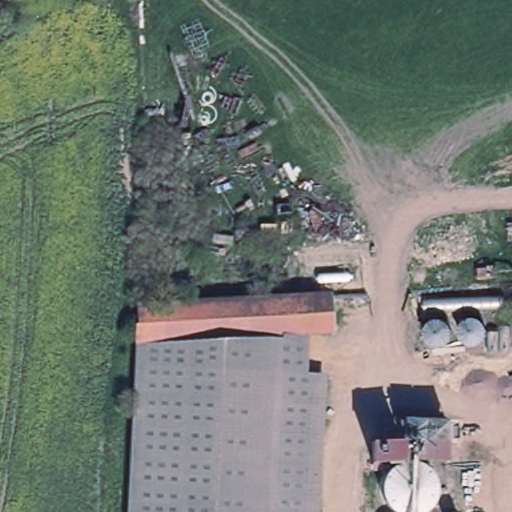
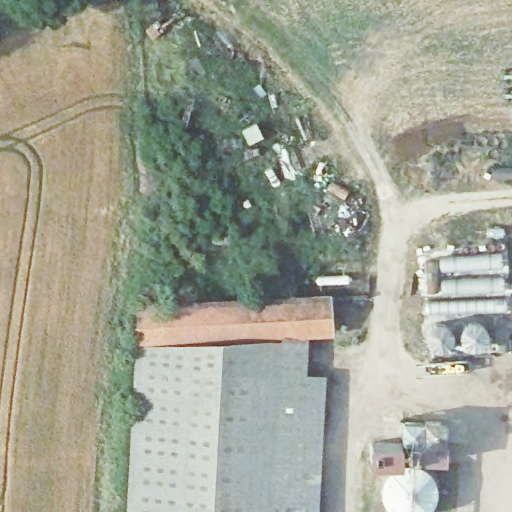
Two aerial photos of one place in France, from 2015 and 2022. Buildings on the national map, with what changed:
unchanged [(314,298),(318,326),(295,328),(132,339),(133,307),(314,298)]
unchanged [(490,347),(428,350),(426,320),(491,320),(490,347)]
unchanged [(295,328),(290,512),(130,512),(132,339),(295,328)]
unchanged [(448,416),(448,463),(436,462),(399,461),(401,413),(448,416)]
unchanged [(436,462),(433,512),(379,512),(381,463),(399,461),(436,462)]

